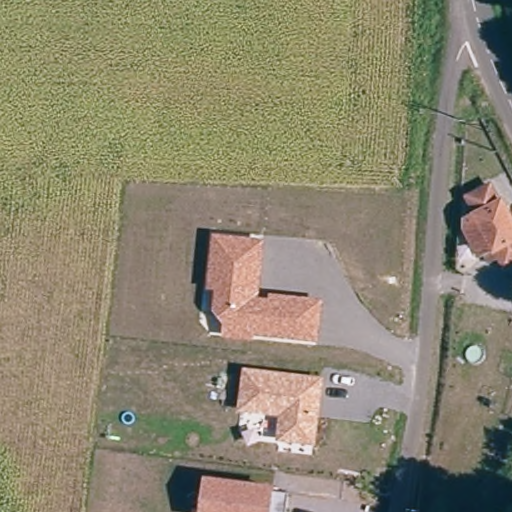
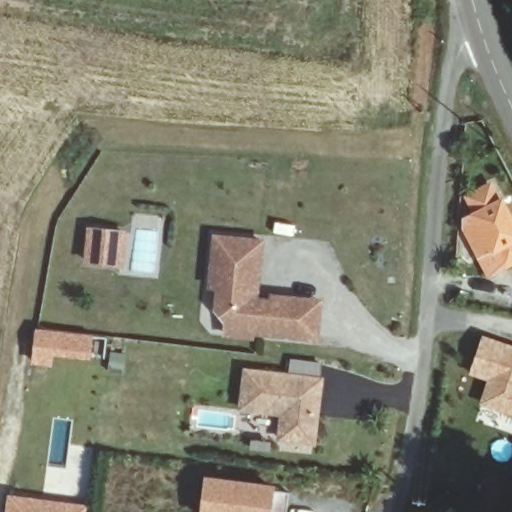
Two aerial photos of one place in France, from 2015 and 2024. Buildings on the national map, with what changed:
unchanged [(502,252),(493,257),(487,246),(480,250),(467,225),(469,210),(478,205),(471,190),(492,180),(500,196),(506,194),(512,206),(512,255),(505,258),(502,252)]
new [(122,267),(81,263),(86,226),(126,230),(122,267)]
unchanged [(211,232),(264,238),(260,298),(268,299),(268,292),(322,299),(318,340),(253,334),(253,340),(222,336),(223,323),(214,311),(214,290),(206,288),(211,232)]
new [(94,335),(91,360),(51,356),(50,365),(32,363),(35,330),(94,335)]
new [(512,417),(479,406),(488,380),(470,376),(483,335),(512,346),(512,417)]
unchanged [(277,440),(279,415),(237,410),(242,366),(324,376),(317,445),(277,440)]
unchanged [(272,487),(272,490),(289,493),(287,512),(204,512),(208,479),(272,487)]
new [(85,512),(9,512),(10,499),(86,507),(85,512)]

